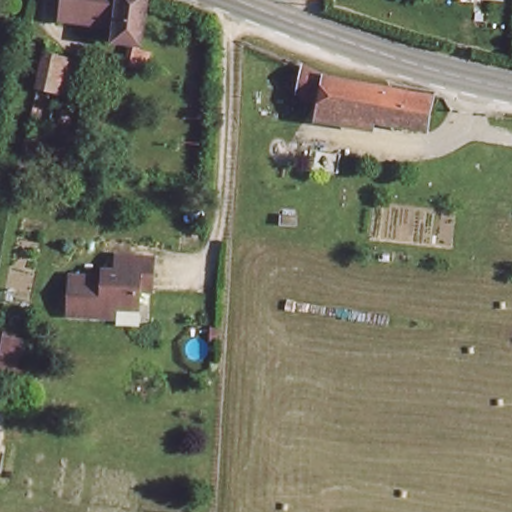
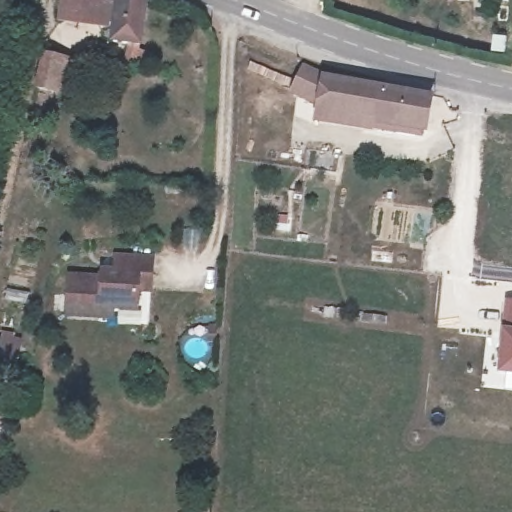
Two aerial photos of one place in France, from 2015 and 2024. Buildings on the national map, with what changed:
unchanged [(145,40),(115,40),(112,12),(62,10),(61,0),(144,0),(145,40)]
unchanged [(69,59),(64,93),(42,90),(49,54),(69,59)]
unchanged [(311,112),(312,100),(291,91),(300,66),(342,82),(428,95),(427,130),(311,112)]
unchanged [(113,302),(114,311),(71,310),(73,273),(113,273),(112,255),(152,256),(151,273),(151,290),(135,289),(135,301),(113,302)]
new [(512,301),(512,383),(495,382),(503,300),(512,301)]
unchanged [(0,340),(2,331),(17,333),(17,356),(0,354),(0,340)]

